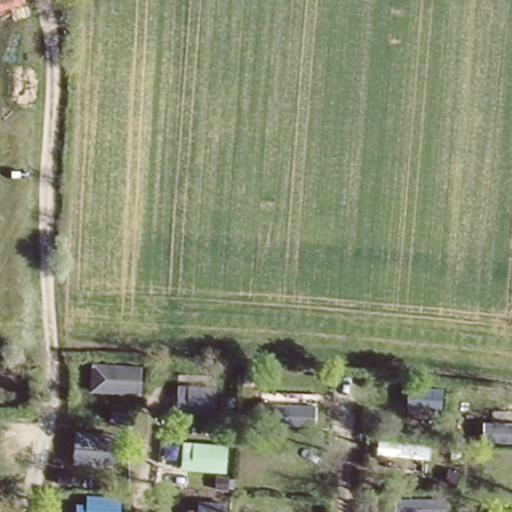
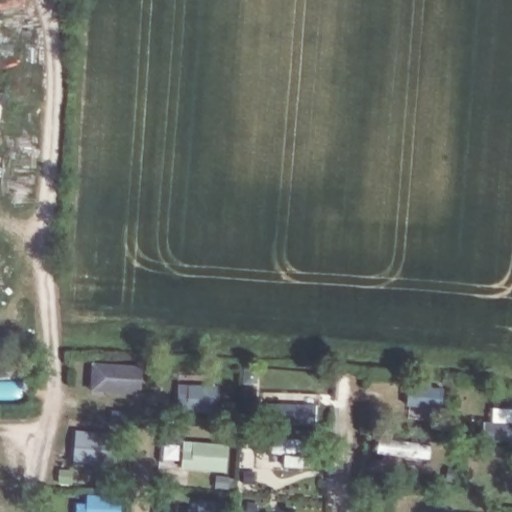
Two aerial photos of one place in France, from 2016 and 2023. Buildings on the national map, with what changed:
unchanged [(141,365),(139,393),(89,391),(90,362),(141,365)]
unchanged [(217,385),(216,412),(186,411),(187,384),(217,385)]
unchanged [(483,440),(484,421),(512,422),(512,440),(483,440)]
unchanged [(117,432),(116,465),(73,461),(74,430),(117,432)]
unchanged [(430,444),(429,459),(376,452),(378,438),(430,444)]
unchanged [(227,445),(225,471),(180,468),(182,441),(227,445)]
unchanged [(119,512),(77,512),(77,503),(85,503),(86,494),(120,495),(119,512)]
unchanged [(298,512),(241,512),(243,498),(299,502),(298,512)]

